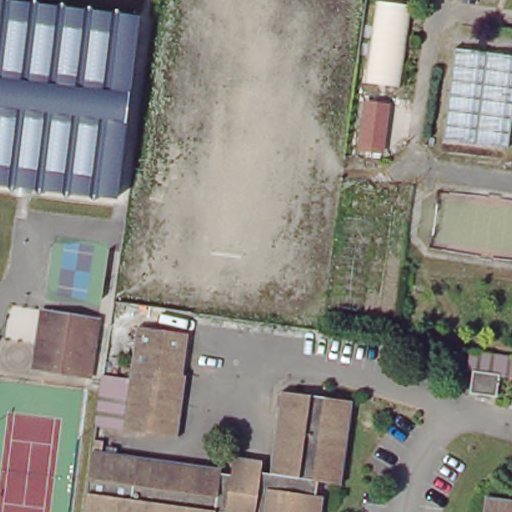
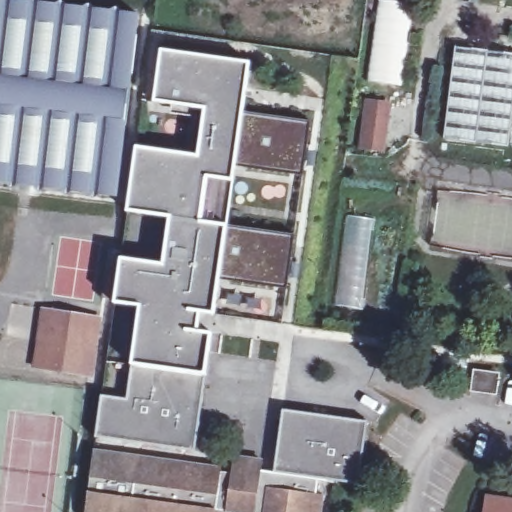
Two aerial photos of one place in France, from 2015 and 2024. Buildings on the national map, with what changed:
unchanged [(0,185),(0,1),(138,18),(116,199),(0,185)]
unchanged [(402,90),(364,84),(376,1),(413,8),(402,90)]
unchanged [(444,142),(452,46),(512,52),(512,149),(444,142)]
new [(127,400),(132,364),(139,307),(114,303),(121,258),(164,263),(170,218),(128,212),(138,149),(189,156),(196,117),(170,113),(169,105),(154,102),(161,50),(251,62),(244,112),(311,120),(304,176),(236,166),(233,182),(228,225),(294,234),(287,289),(219,280),(214,315),(200,313),(198,331),(211,333),(206,375),(195,449),(95,434),(101,396),(127,400)]
unchanged [(358,150),(364,101),(389,105),(383,153),(358,150)]
new [(346,215),(373,218),(360,310),(335,306),(346,215)]
unchanged [(96,351),(83,349),(80,373),(48,369),(35,367),(44,310),(56,312),(100,318),(96,351)]
demolished [(133,381),(141,327),(186,333),(180,375),(186,375),(178,437),(99,426),(105,377),(133,381)]
unchanged [(504,381),(499,396),(466,391),(474,353),(512,356),(512,382),(504,381)]
unchanged [(96,442),(103,443),(103,453),(223,470),(222,477),(232,479),(234,458),(264,462),(263,473),(273,474),(284,391),(340,399),(331,465),(329,483),(319,482),(317,495),(324,496),(321,512),(86,512),(93,470),(96,442)]
unchanged [(353,401),(341,485),(329,483),(331,465),(340,399),(353,401)]
unchanged [(512,502),(512,512),(486,512),(488,499),(512,502)]

